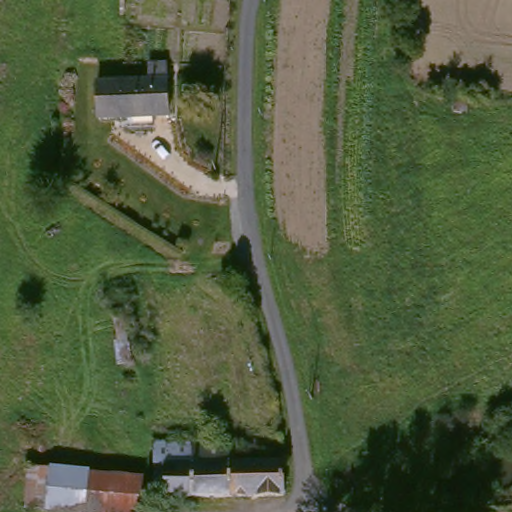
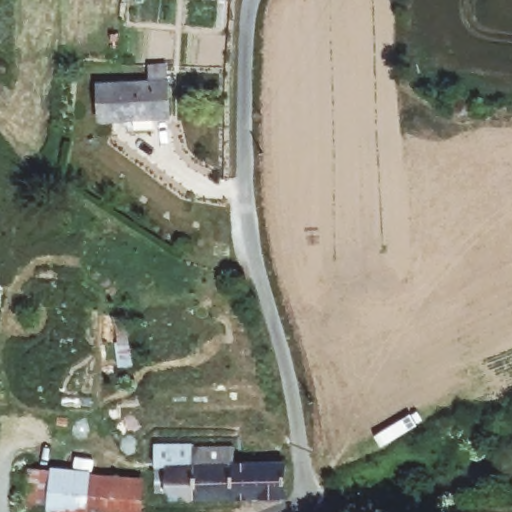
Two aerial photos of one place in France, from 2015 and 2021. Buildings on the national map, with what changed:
unchanged [(97,123),(94,90),(148,87),(147,72),(166,71),(169,86),(170,119),(97,123)]
unchanged [(190,449),(197,449),(230,448),(232,464),(279,462),(290,461),(289,499),(177,503),(172,497),(148,497),(149,447),(190,449)]
unchanged [(42,512),(28,511),(31,469),(141,480),(142,512),(42,512)]

